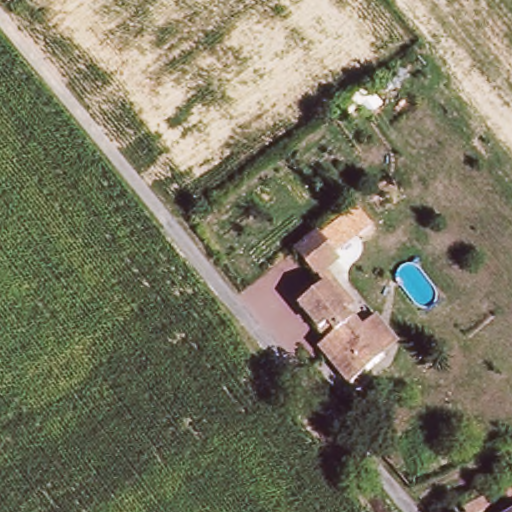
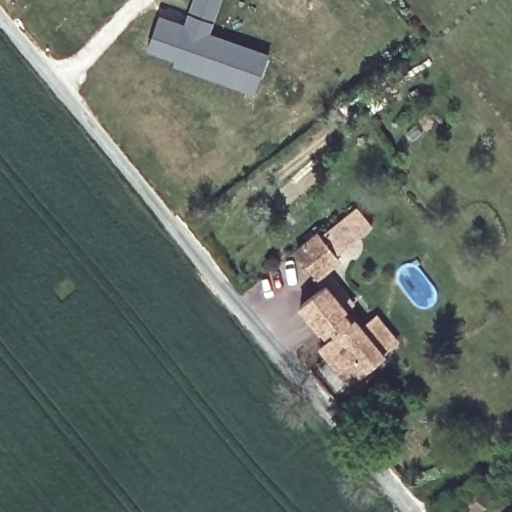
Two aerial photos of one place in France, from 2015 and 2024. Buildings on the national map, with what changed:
new [(184,25),(188,13),(193,0),(218,0),(210,21),(206,33),(266,55),(252,92),(220,81),(222,75),(146,47),(157,15),(184,25)]
unchanged [(357,203),(374,226),(339,255),(321,233),(357,203)]
unchanged [(318,283),(300,262),(297,257),(318,241),(321,246),(338,267),(318,283)]
unchanged [(396,349),(382,361),(352,386),(326,355),(340,342),(333,333),(327,338),(304,309),(325,292),(333,286),(354,312),(346,318),(362,337),(376,325),(396,349)]
unchanged [(465,512),(463,507),(512,485),(512,505),(503,509),(501,505),(485,512),(465,512)]
unchanged [(510,512),(512,511),(512,512),(510,512)]

